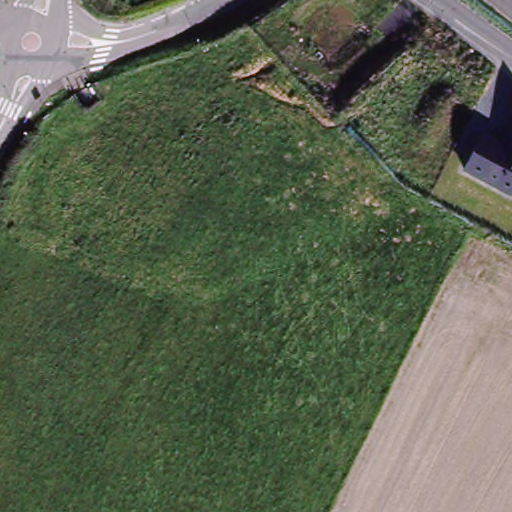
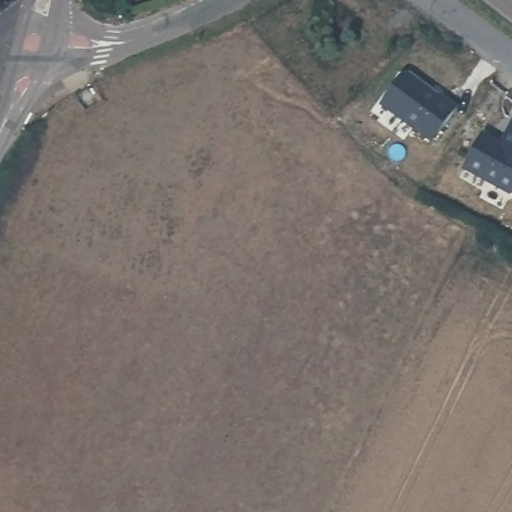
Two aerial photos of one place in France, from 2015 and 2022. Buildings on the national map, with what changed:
new [(461,106),(439,141),(390,106),(413,74),(461,106)]
unchanged [(502,144),(512,124),(512,195),(509,196),(466,171),(483,135),(502,144)]

